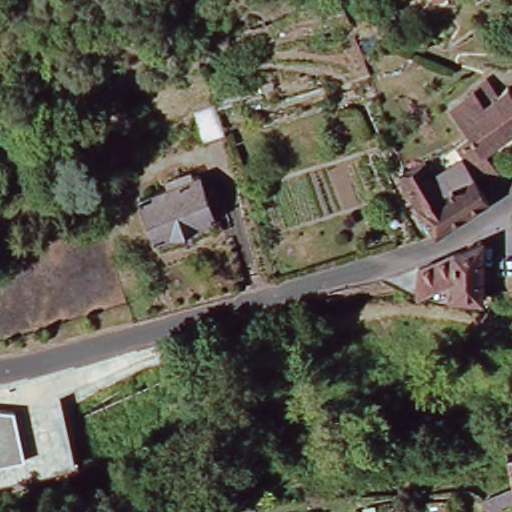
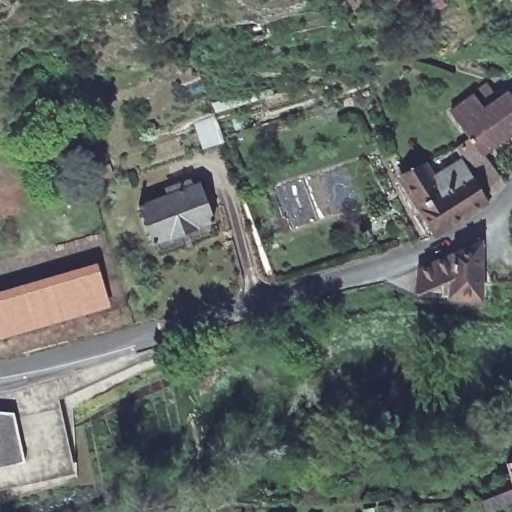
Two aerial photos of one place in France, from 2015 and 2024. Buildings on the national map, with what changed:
unchanged [(237,37),(235,19),(261,14),(265,33),(237,37)]
unchanged [(447,147),(463,138),(446,113),(480,90),(482,88),(492,102),(503,94),(512,107),(512,132),(477,156),(493,180),(473,193),(455,162),(447,147)]
unchanged [(220,136),(222,141),(200,149),(198,148),(190,120),(212,113),(220,136)]
unchanged [(480,205),(433,235),(423,240),(410,217),(415,215),(393,176),(398,174),(419,163),(428,177),(455,162),(473,193),(480,205)]
unchanged [(193,180),(207,219),(148,241),(133,202),(193,180)]
unchanged [(411,296),(413,271),(478,242),(476,299),(411,296)]
new [(110,306),(0,338),(0,289),(97,261),(110,306)]
unchanged [(23,461),(0,466),(0,412),(12,413),(23,461)]
unchanged [(510,494),(501,465),(512,462),(512,494),(510,494)]

